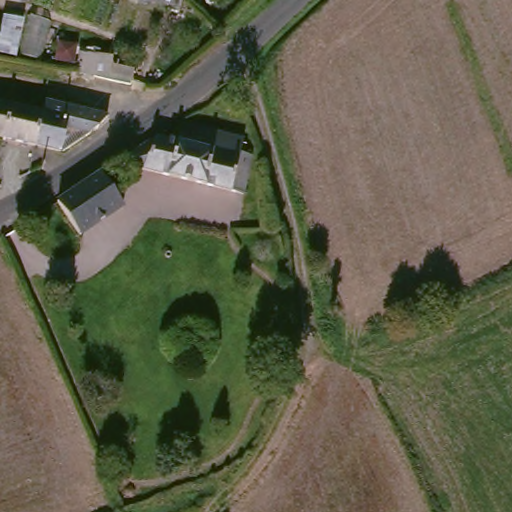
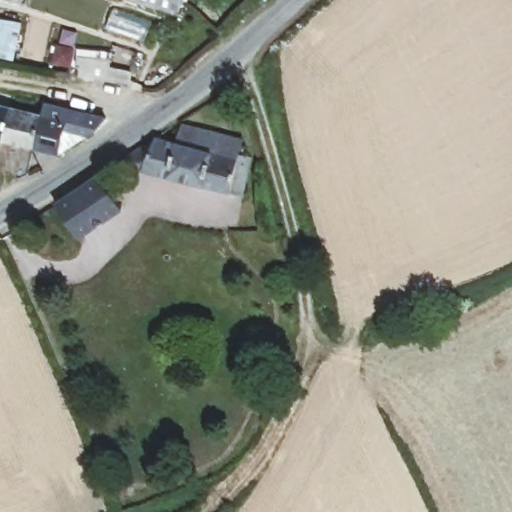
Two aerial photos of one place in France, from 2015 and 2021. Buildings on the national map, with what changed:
unchanged [(185,2),(173,22),(125,0),(182,0),(185,2)]
unchanged [(43,103),(104,110),(102,123),(92,130),(65,127),(63,150),(37,147),(43,114),(43,108),(43,103)]
unchanged [(0,108),(9,110),(43,114),(37,147),(3,144),(0,143),(0,108)]
unchanged [(168,142),(176,144),(179,130),(243,146),(241,152),(251,155),(242,196),(159,176),(168,142)]
unchanged [(106,163),(111,161),(152,136),(168,142),(159,176),(106,163)]
unchanged [(124,221),(79,245),(59,206),(102,180),(124,221)]

